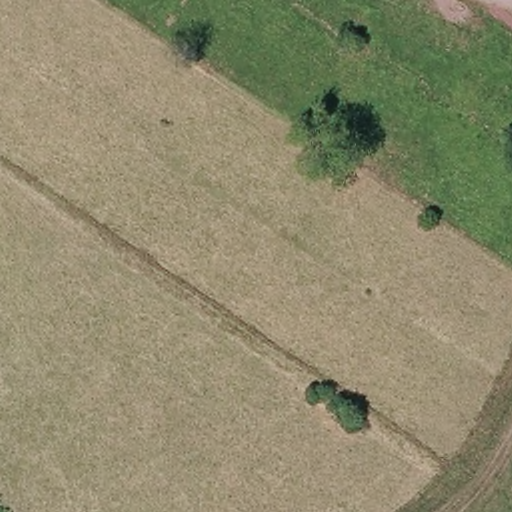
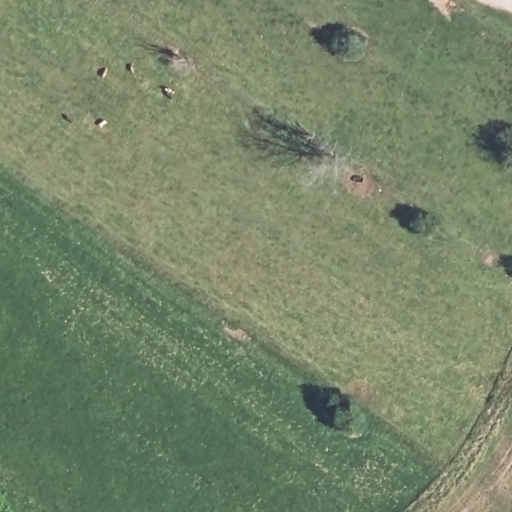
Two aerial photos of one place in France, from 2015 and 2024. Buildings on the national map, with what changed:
[]

